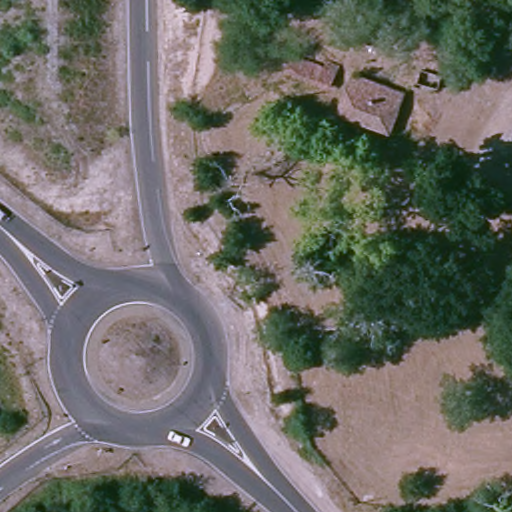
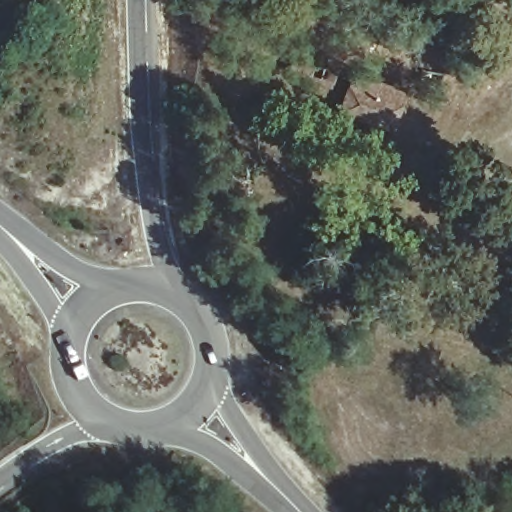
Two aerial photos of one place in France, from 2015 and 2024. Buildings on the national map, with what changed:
unchanged [(317,68),(313,83),(278,69),(283,54),(317,68)]
unchanged [(383,132),(333,112),(349,78),(378,91),(375,107),(391,111),(383,132)]

